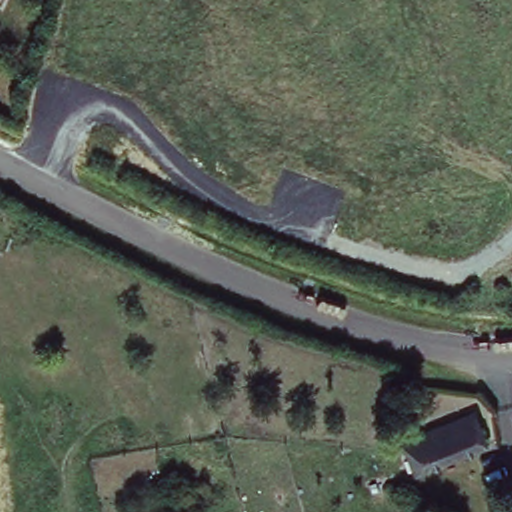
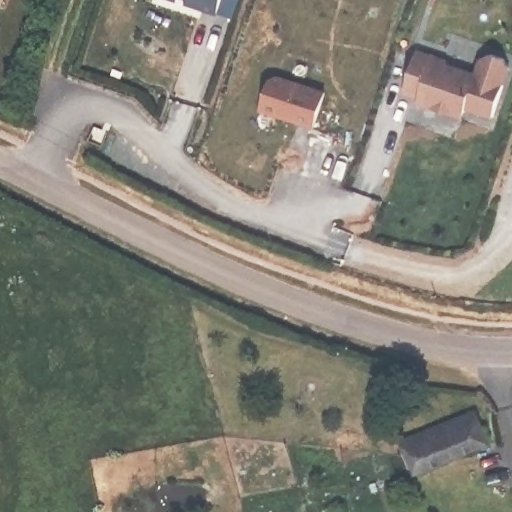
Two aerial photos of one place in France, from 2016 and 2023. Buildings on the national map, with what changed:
new [(185,6),(187,0),(222,0),(217,15),(185,6)]
new [(468,114),(456,119),(419,109),(421,102),(402,97),(416,56),(447,67),(445,72),(475,81),(479,65),(488,59),(504,64),(507,73),(492,120),(468,114)]
new [(270,84),(278,79),(325,94),(313,129),(262,113),(270,84)]
unchanged [(496,443),(421,474),(406,437),(479,405),(496,443)]

